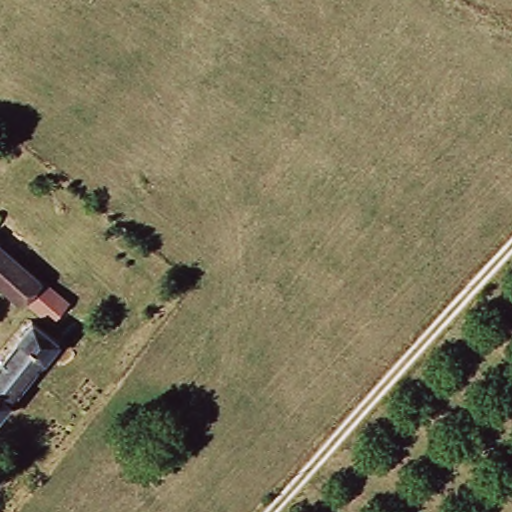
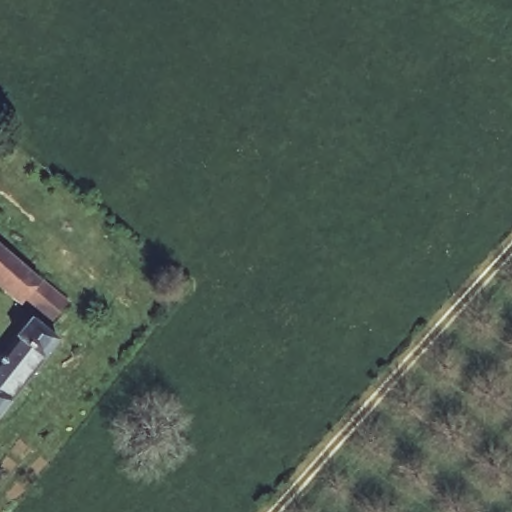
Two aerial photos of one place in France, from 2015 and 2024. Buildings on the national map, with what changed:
unchanged [(62,334),(20,300),(17,302),(0,286),(0,247),(37,282),(43,277),(55,288),(82,311),(62,334)]
unchanged [(0,415),(0,372),(27,338),(22,335),(35,318),(64,341),(5,418),(0,415)]

